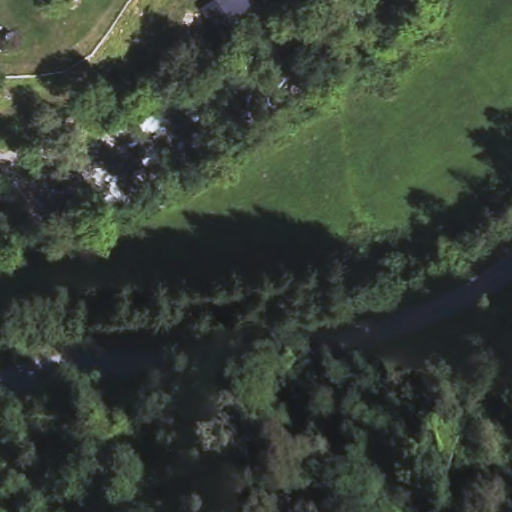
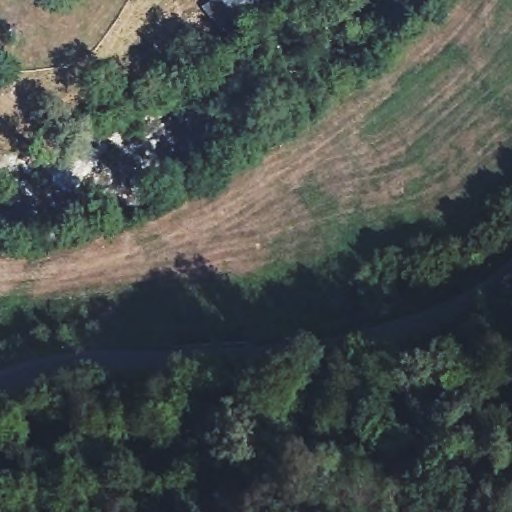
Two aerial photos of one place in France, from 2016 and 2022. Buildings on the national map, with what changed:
unchanged [(203,0),(261,0),(223,27),(203,0)]

